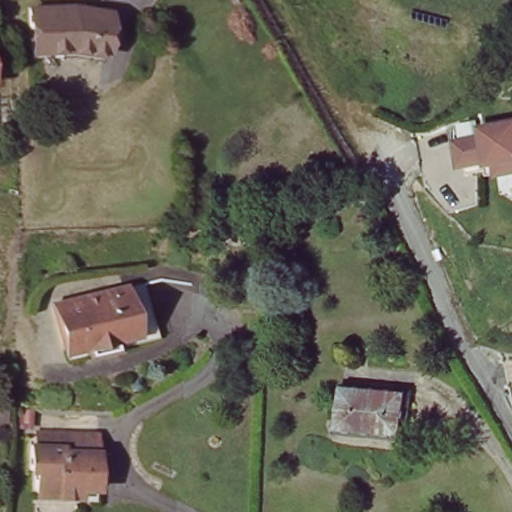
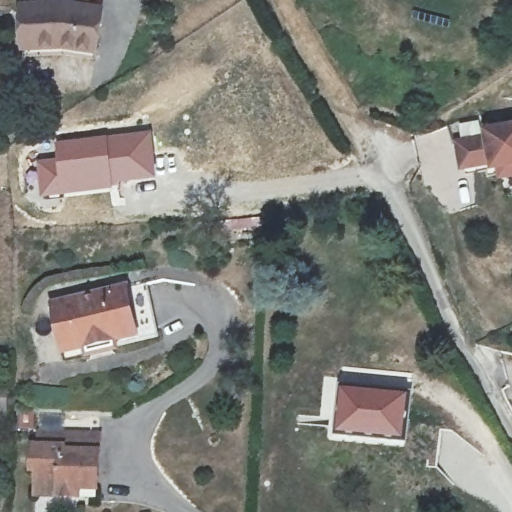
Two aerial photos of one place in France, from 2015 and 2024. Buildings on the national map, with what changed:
unchanged [(20,8),(66,6),(105,15),(97,55),(64,49),(25,50),(20,8)]
unchanged [(483,114),(489,131),(512,127),(512,166),(496,169),(495,164),(465,169),(461,144),(456,145),(450,126),(483,114)]
new [(151,130),(156,179),(115,190),(107,135),(151,130)]
new [(57,158),(55,141),(107,135),(115,190),(41,197),(36,160),(57,158)]
unchanged [(64,307),(133,283),(147,330),(79,353),(64,307)]
unchanged [(341,385),(386,388),(404,390),(400,425),(399,439),(342,432),(334,431),(341,385)]
unchanged [(43,495),(44,472),(37,472),(38,447),(41,447),(44,431),(104,436),(103,452),(99,452),(99,465),(103,465),(102,487),(87,486),(86,497),(43,495)]

